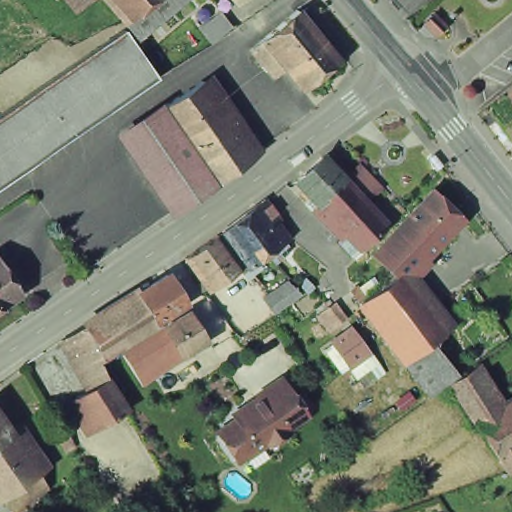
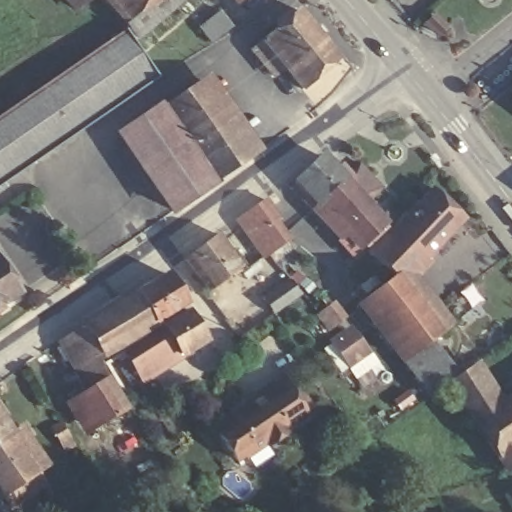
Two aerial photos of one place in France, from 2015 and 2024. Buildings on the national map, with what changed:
unchanged [(64,0),(83,0),(72,10),(64,0)]
unchanged [(100,0),(146,0),(120,24),(100,0)]
unchanged [(120,24),(146,0),(179,0),(135,40),(120,24)]
unchanged [(229,0),(235,0),(232,2),(229,0)]
unchanged [(297,7),(300,11),(304,8),(326,33),(322,37),(337,56),(302,86),(283,65),(273,72),(250,46),(260,37),(297,7)]
unchanged [(432,27),(427,22),(438,10),(443,16),(432,27)]
unchanged [(210,46),(197,30),(219,12),(231,29),(210,46)]
unchanged [(452,22),(448,17),(452,13),(457,17),(452,22)]
unchanged [(7,107),(43,82),(45,81),(118,32),(137,57),(148,74),(152,79),(14,173),(0,182),(0,113),(7,107)]
unchanged [(206,77),(257,152),(178,207),(125,131),(206,77)]
unchanged [(512,89),(512,95),(509,92),(512,89)]
unchanged [(346,252),(331,237),(340,229),(312,201),(307,196),(302,201),(285,183),(290,179),(317,152),(330,166),(335,162),(345,171),(355,161),(376,182),(363,194),(360,198),(380,221),(346,252)]
unchanged [(432,192),(462,220),(452,230),(456,234),(437,254),(433,250),(425,260),(421,257),(395,232),(432,192)]
unchanged [(265,200),(277,218),(271,224),(290,251),(275,264),(267,257),(255,265),(250,270),(222,232),(265,200)]
unchanged [(358,305),(392,278),(393,277),(372,257),(395,232),(421,257),(401,278),(444,332),(421,349),(402,362),(358,305)]
unchanged [(195,274),(184,260),(209,241),(215,236),(240,267),(208,292),(205,288),(200,292),(190,278),(195,274)]
unchanged [(19,288),(7,297),(10,302),(2,308),(0,309),(0,260),(19,288)]
unchanged [(284,311),(272,293),(297,274),(310,290),(284,311)]
unchanged [(135,291),(133,287),(147,278),(150,283),(162,276),(180,307),(165,316),(158,320),(135,333),(96,358),(94,360),(75,328),(135,291)]
unchanged [(165,316),(167,320),(183,310),(201,340),(192,345),(194,350),(160,372),(166,383),(127,408),(100,361),(160,324),(158,320),(165,316)]
unchanged [(124,407),(88,429),(69,399),(85,390),(57,340),(75,328),(94,360),(120,405),(122,403),(124,407)]
unchanged [(352,372),(337,350),(352,337),(369,360),(352,372)]
unchanged [(435,355),(453,378),(428,393),(402,362),(421,349),(428,360),(435,355)]
unchanged [(448,383),(472,367),(497,406),(512,396),(512,470),(507,472),(448,383)]
unchanged [(240,457),(220,427),(238,416),(235,412),(250,402),(252,407),(265,397),(262,392),(287,376),(310,411),(289,425),(292,429),(272,442),(270,438),(240,457)]
unchanged [(0,404),(14,423),(14,427),(27,446),(23,448),(37,468),(0,493),(0,404)]
unchanged [(70,436),(59,442),(52,430),(62,423),(70,436)]
unchanged [(37,468),(49,487),(13,511),(9,506),(0,512),(0,493),(37,468)]

